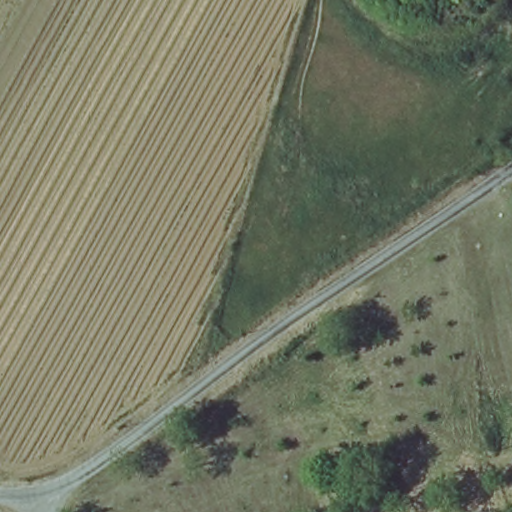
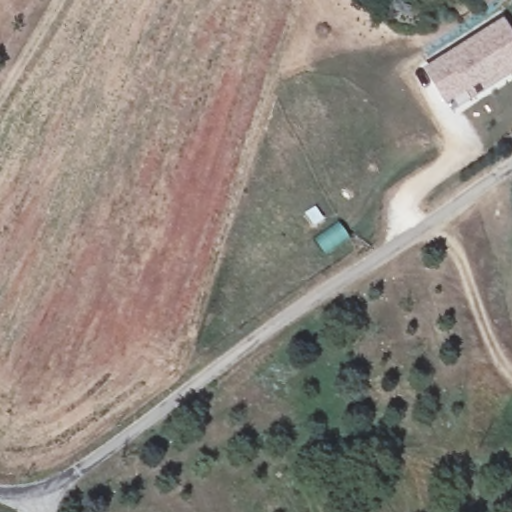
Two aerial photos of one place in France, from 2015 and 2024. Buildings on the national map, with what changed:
new [(446,104),(422,69),(503,20),(512,34),(512,74),(471,99),(466,91),(446,104)]

